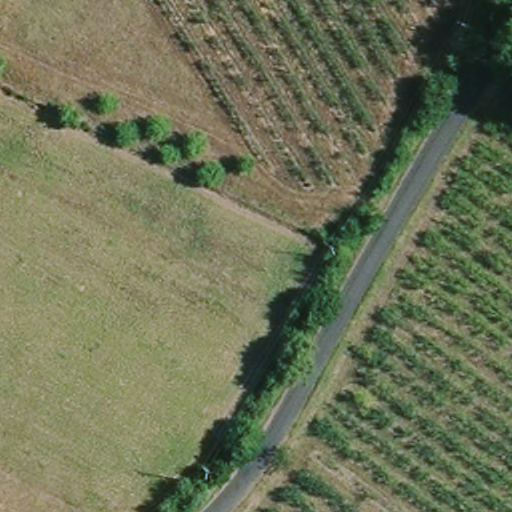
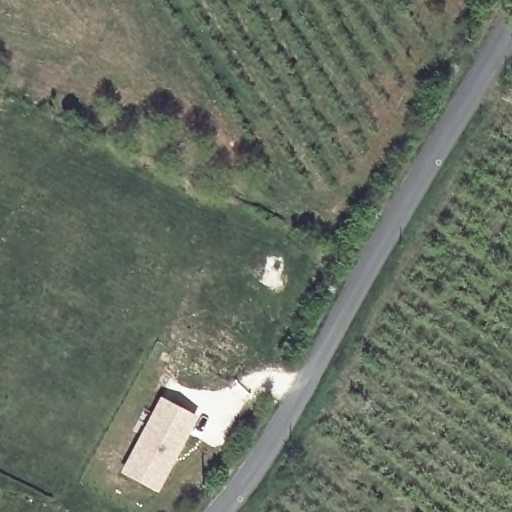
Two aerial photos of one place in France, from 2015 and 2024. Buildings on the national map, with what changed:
new [(160,395),(199,416),(158,492),(120,471),(160,395)]

